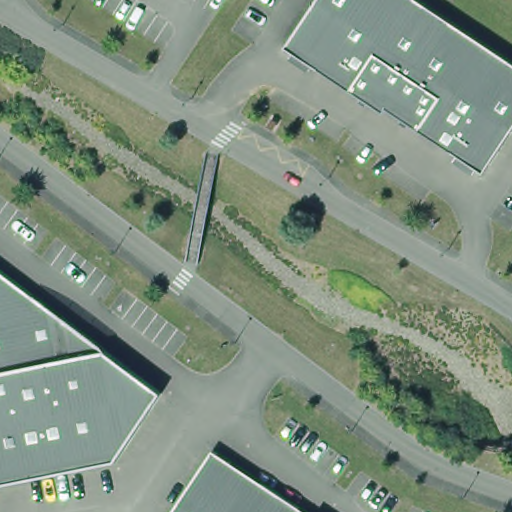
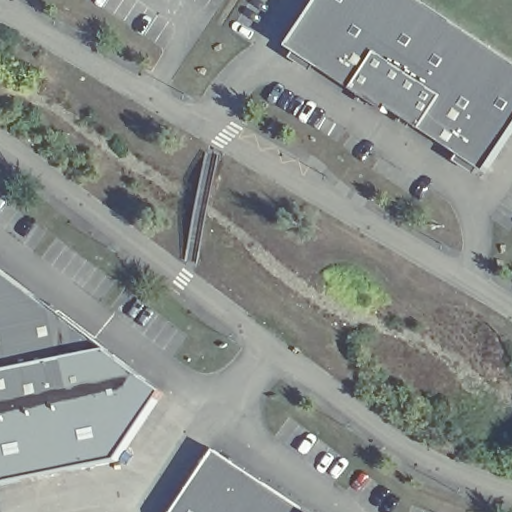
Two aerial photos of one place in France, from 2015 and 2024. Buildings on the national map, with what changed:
unchanged [(374,109),(274,44),(303,0),(413,0),(512,66),(512,109),(474,168),(376,105),(374,109)]
unchanged [(33,292),(35,305),(47,303),(50,314),(60,312),(161,389),(116,457),(0,480),(0,267),(33,292)]
unchanged [(206,446),(215,452),(224,457),(225,466),(246,479),(255,478),(279,494),(292,503),(294,512),(163,512),(206,446)]

